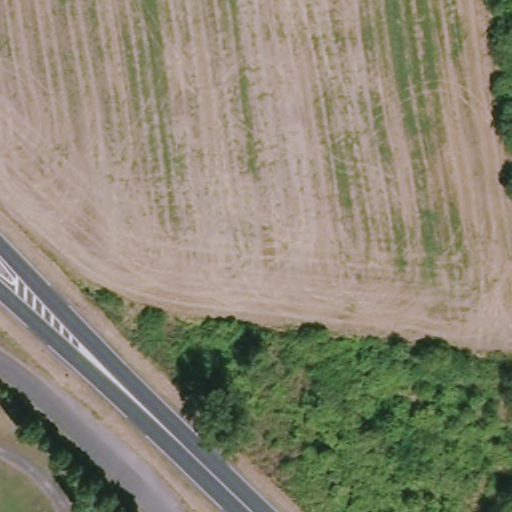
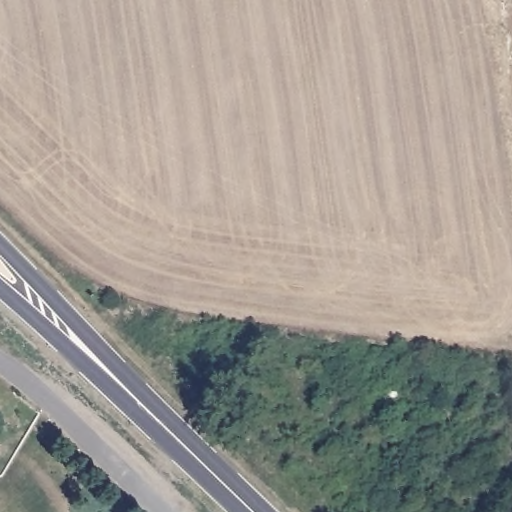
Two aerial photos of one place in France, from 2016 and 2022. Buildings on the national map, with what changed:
[]

